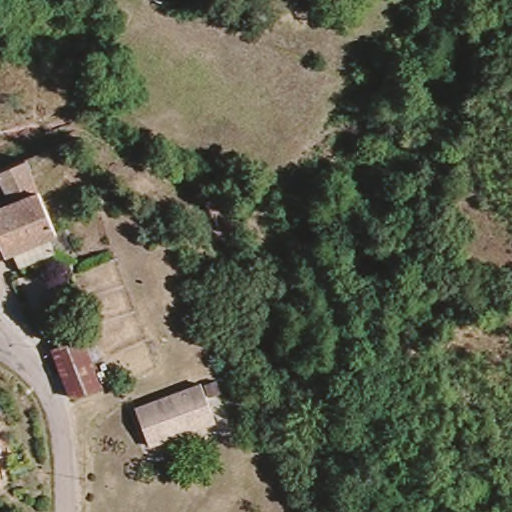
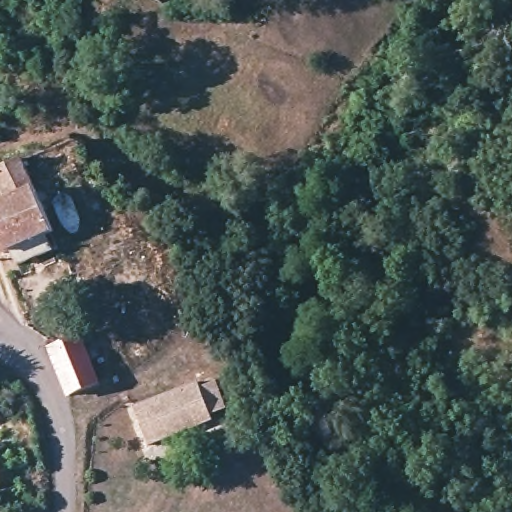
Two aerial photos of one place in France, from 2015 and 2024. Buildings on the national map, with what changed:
unchanged [(37,173),(29,177),(55,236),(47,242),(52,257),(22,274),(12,257),(7,260),(0,248),(0,172),(32,160),(37,173)]
unchanged [(84,342),(105,388),(72,403),(52,356),(84,342)]
unchanged [(196,381),(214,417),(150,446),(132,411),(196,381)]
unchanged [(5,485),(0,486),(0,470),(5,485)]

